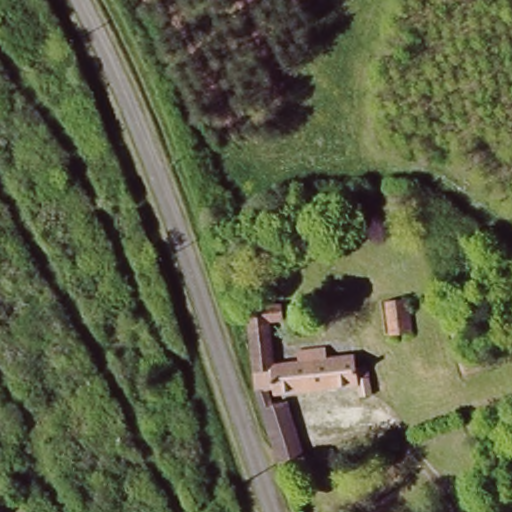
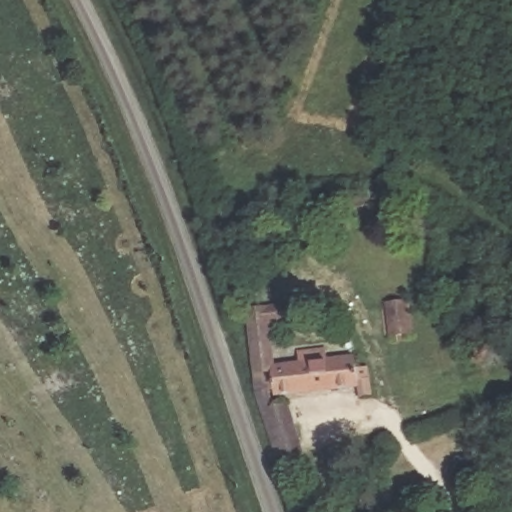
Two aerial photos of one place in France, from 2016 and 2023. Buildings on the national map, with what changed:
unchanged [(281,306),(278,367),(300,364),(299,349),(327,346),(328,359),(364,355),(375,399),(288,404),(309,462),(277,469),(259,411),(254,379),(247,310),(281,306)]

